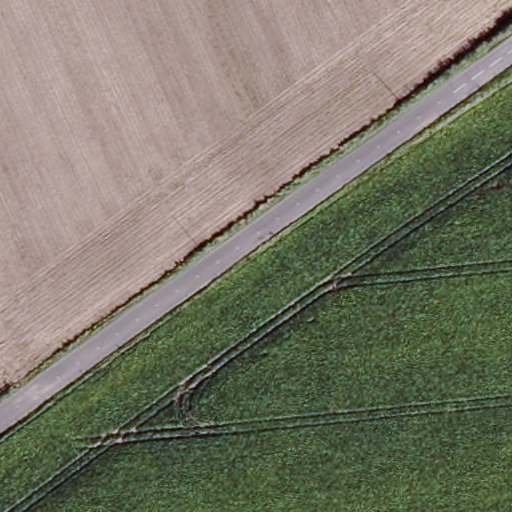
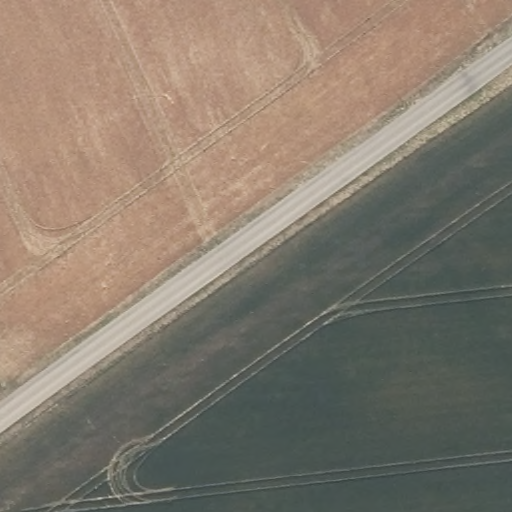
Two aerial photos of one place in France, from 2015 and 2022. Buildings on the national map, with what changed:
[]

